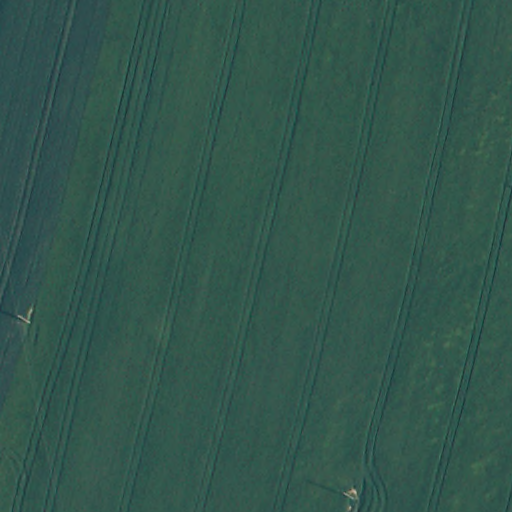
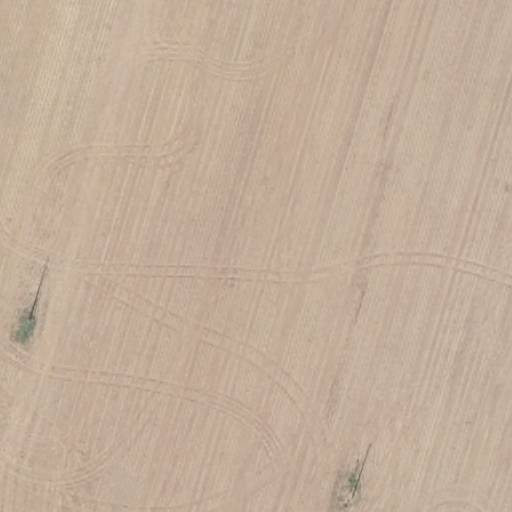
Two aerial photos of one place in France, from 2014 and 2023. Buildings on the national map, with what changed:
[]

